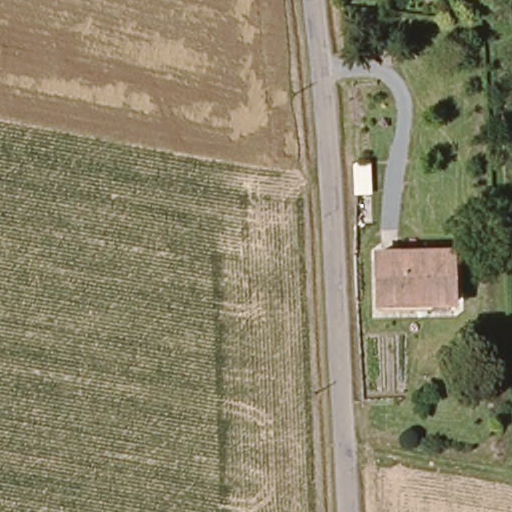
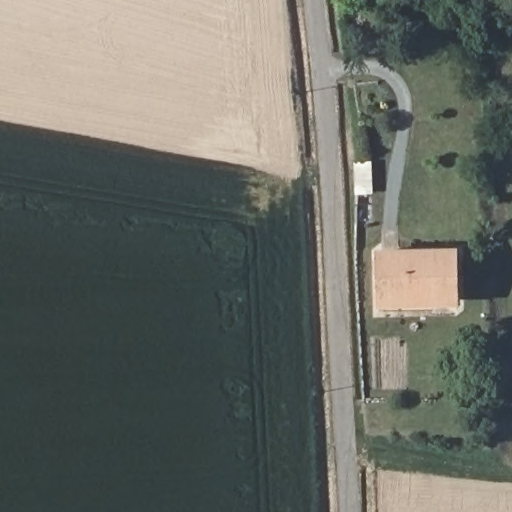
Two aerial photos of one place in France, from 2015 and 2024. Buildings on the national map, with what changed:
unchanged [(456,308),(377,311),(376,254),(455,253),(456,308)]

